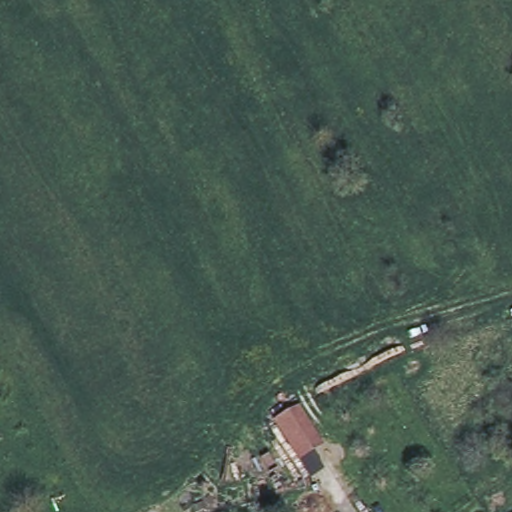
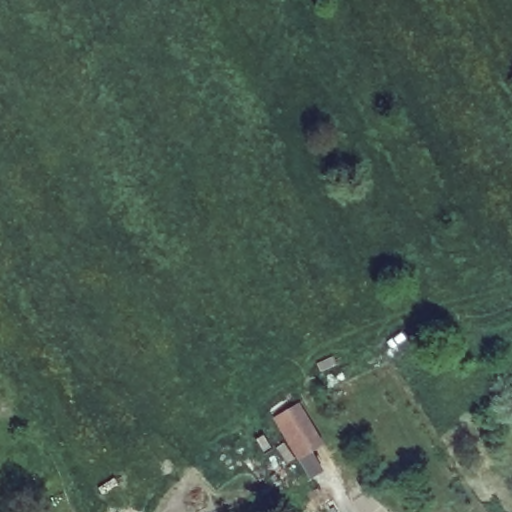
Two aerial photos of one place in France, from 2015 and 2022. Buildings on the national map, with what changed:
unchanged [(298,406),(321,445),(305,454),(282,415),(298,406)]

